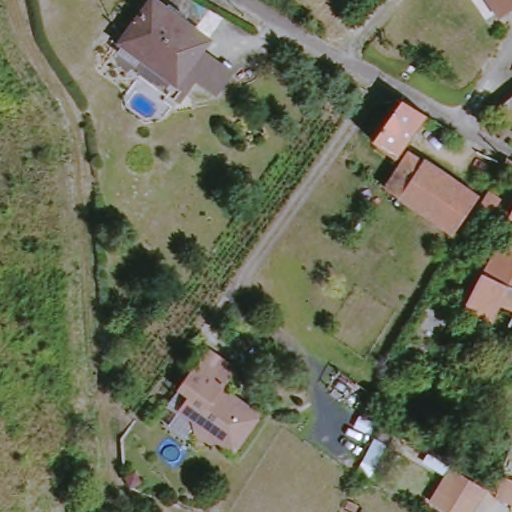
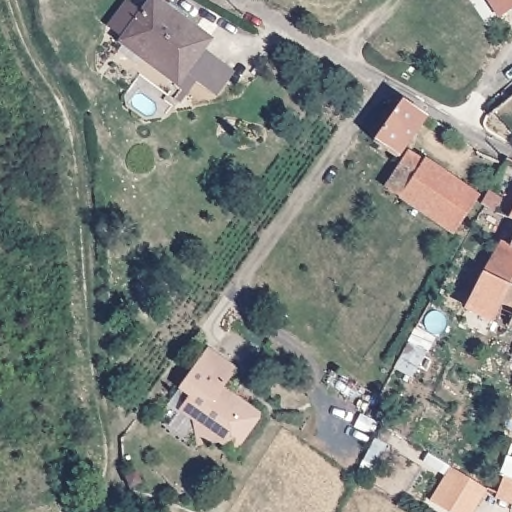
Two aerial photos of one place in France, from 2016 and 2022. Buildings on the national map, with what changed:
unchanged [(209,89),(186,71),(178,83),(122,37),(151,0),(162,0),(212,40),(203,50),(227,68),(233,73),(217,95),(209,89)]
unchanged [(492,6),(488,0),(512,0),(512,15),(502,21),(492,6)]
unchanged [(431,116),(402,156),(376,139),(404,100),(431,116)]
unchanged [(459,235),(393,190),(414,158),(424,164),(427,159),(483,197),(459,235)]
unchanged [(488,207),(484,205),(492,192),(504,199),(498,212),(488,207)]
unchanged [(512,216),(512,219),(511,219),(512,216)]
unchanged [(470,308),(503,241),(509,244),(512,240),(512,325),(510,329),(470,308)]
unchanged [(438,303),(457,314),(428,367),(399,372),(438,303)]
unchanged [(241,369),(226,393),(266,415),(240,453),(223,442),(203,447),(198,421),(186,414),(197,397),(187,390),(213,351),(241,369)]
unchanged [(486,488),(471,512),(450,512),(428,499),(448,467),(486,488)]

